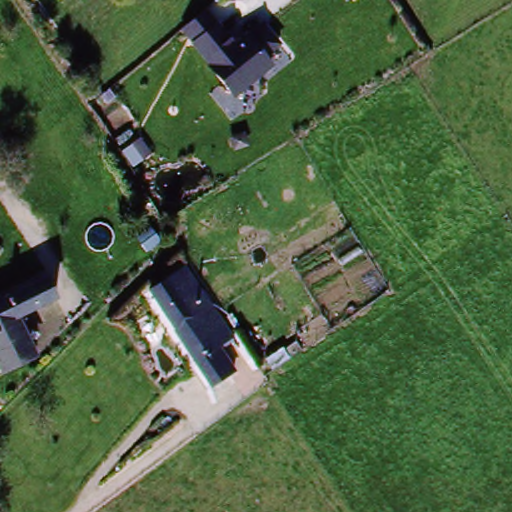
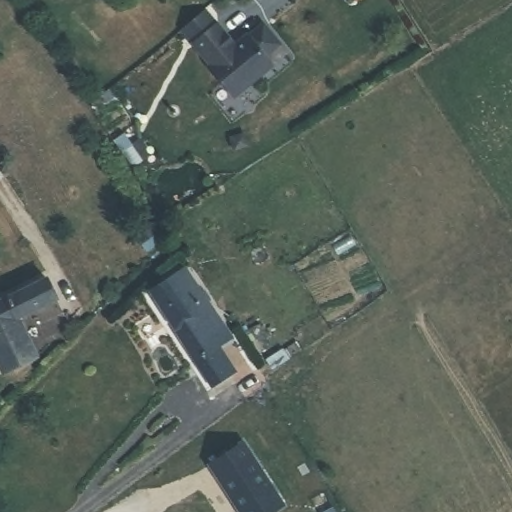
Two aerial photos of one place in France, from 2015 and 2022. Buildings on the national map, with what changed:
unchanged [(182,30),(206,11),(230,39),(244,26),(249,34),(264,24),(280,46),(266,58),(272,69),(235,99),(182,30)]
unchanged [(225,334),(213,342),(231,368),(207,382),(146,290),(181,267),(225,334)]
unchanged [(47,294),(15,314),(16,317),(0,326),(0,299),(37,275),(47,294)]
unchanged [(2,365),(0,361),(0,326),(16,317),(34,346),(2,365)]
new [(242,442),(283,506),(274,512),(240,512),(209,464),(242,442)]

